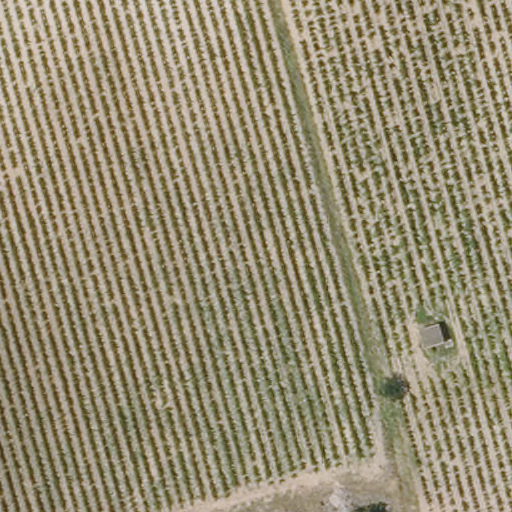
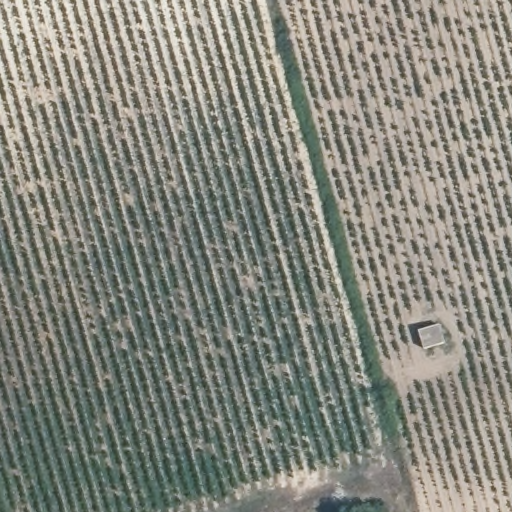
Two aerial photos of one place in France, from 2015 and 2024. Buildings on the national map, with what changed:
unchanged [(449,326),(453,346),(423,347),(425,333),(449,326)]

